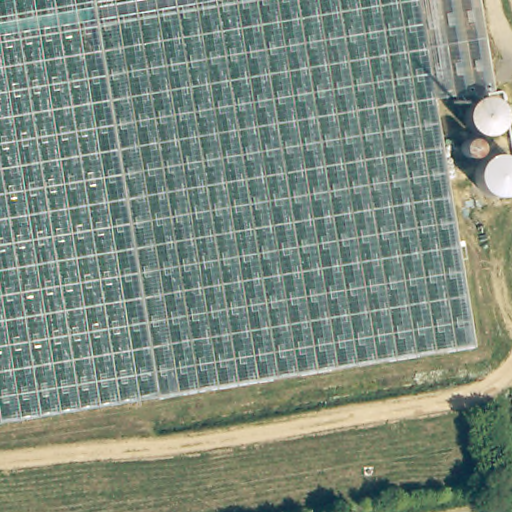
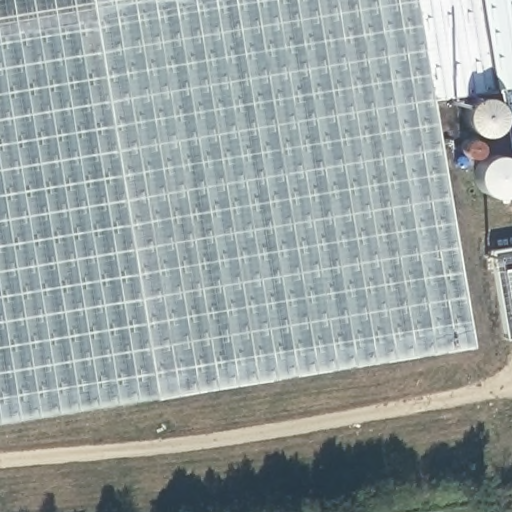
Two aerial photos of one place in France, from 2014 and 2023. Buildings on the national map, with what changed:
unchanged [(432,100),(472,346),(0,424),(0,0),(476,0),(491,90),(432,100)]
new [(476,0),(512,0),(512,85),(491,90),(476,0)]
unchanged [(500,124),(500,126),(498,128),(497,129),(496,131),(495,132),(493,134),(491,135),(489,136),(487,136),(486,137),(483,137),(481,137),(479,137),(477,137),(475,136),(473,135),(472,134),(470,133),(468,132),(467,130),(466,129),(465,127),(463,125),(462,123),(462,121),(462,119),(462,117),(462,115),(462,113),(463,111),(463,109),(465,107),(466,106),(467,104),(468,103),(471,101),(472,100),(474,99),(476,99),(478,98),(480,98),(482,98),(484,98),(486,98),(488,99),(490,100),(492,101),(493,102),(495,103),(497,105),(497,106),(499,108),(500,110),(501,112),(501,114),(501,116),(502,118),(501,120),(501,122),(500,124)]
unchanged [(463,142),(464,142),(465,141),(466,140),(467,140),(468,140),(470,140),(472,140),(473,140),(474,141),(475,141),(476,142),(477,143),(477,144),(478,145),(478,146),(479,147),(479,148),(479,150),(479,151),(479,152),(478,153),(478,154),(477,155),(477,156),(476,157),(475,157),(473,158),(472,158),(471,159),(470,159),(468,159),(467,158),(466,158),(465,157),(463,156),(462,155),(461,154),(461,152),(461,151),(460,150),(460,149),(461,148),(461,147),(461,145),(462,144),(462,143),(463,142)]
new [(512,339),(506,339),(492,251),(512,248),(512,339)]

